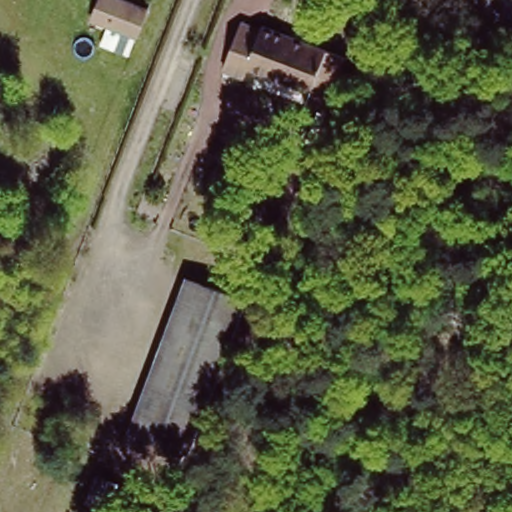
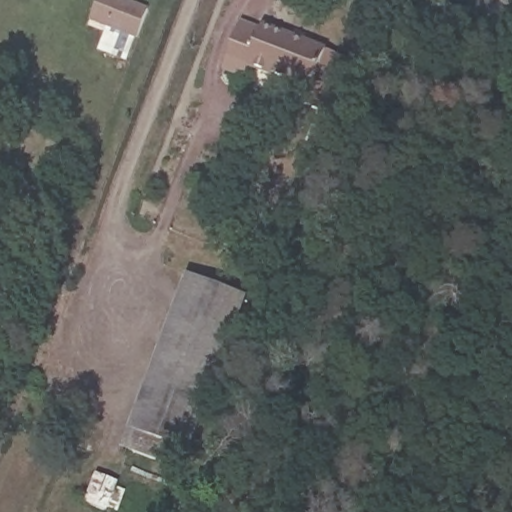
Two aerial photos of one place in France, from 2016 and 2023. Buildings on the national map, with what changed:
unchanged [(137,44),(108,32),(90,26),(101,0),(104,0),(117,5),(147,16),(137,44)]
unchanged [(345,65),(324,121),(305,113),(311,96),(250,72),(252,62),(236,54),(245,33),(261,39),(265,33),(345,65)]
unchanged [(250,301),(210,412),(203,409),(182,463),(140,448),(134,444),(155,390),(148,387),(190,279),(196,281),(244,300),(250,301)]

